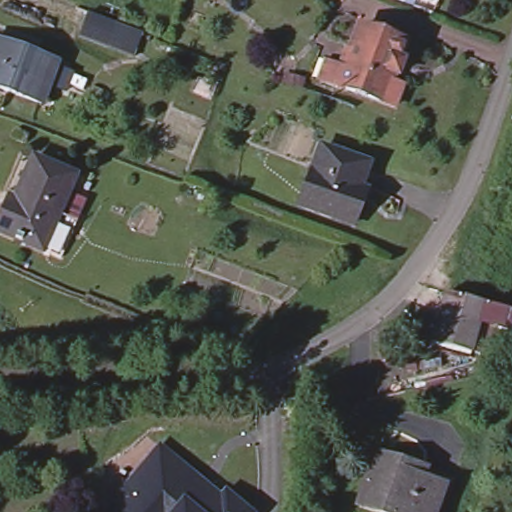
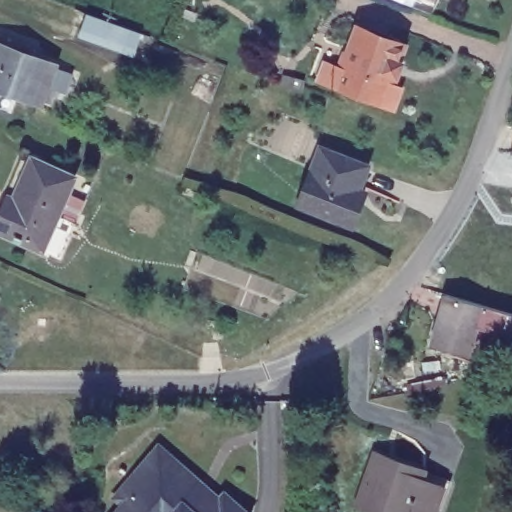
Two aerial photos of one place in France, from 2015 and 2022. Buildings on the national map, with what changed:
unchanged [(75,39),(83,14),(140,34),(135,57),(75,39)]
unchanged [(326,92),(351,23),(406,42),(392,83),(403,85),(394,112),(326,92)]
unchanged [(53,65),(40,104),(0,89),(0,45),(53,65)]
unchanged [(365,165),(356,190),(363,192),(351,224),(298,203),(320,147),(365,165)]
unchanged [(55,256),(35,248),(0,232),(0,206),(5,208),(26,158),(66,176),(51,212),(70,220),(55,256)]
unchanged [(507,316),(505,342),(472,333),(465,359),(425,348),(440,297),(479,308),(507,316)]
unchanged [(220,492),(225,488),(249,512),(106,512),(116,501),(108,494),(157,437),(220,492)]
unchanged [(410,468),(424,473),(445,481),(442,489),(434,512),(379,512),(355,503),(371,454),(410,468)]

